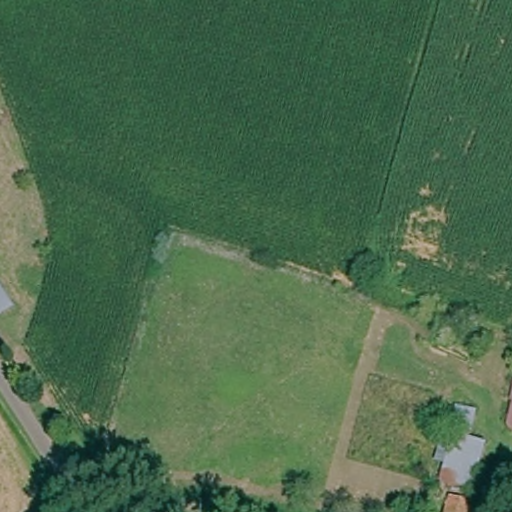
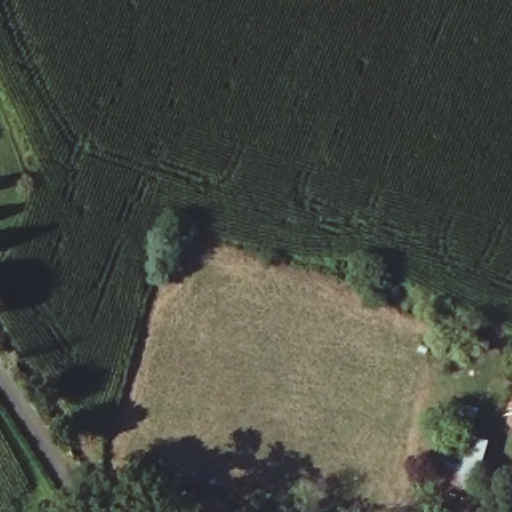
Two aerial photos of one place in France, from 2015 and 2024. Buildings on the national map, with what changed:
unchanged [(504,430),(512,387),(512,432),(504,430)]
unchanged [(440,512),(446,491),(422,484),(436,424),(461,432),(500,443),(480,501),(476,512),(440,512)]

